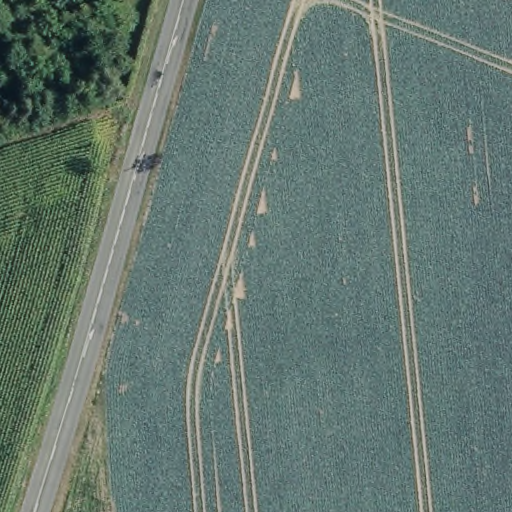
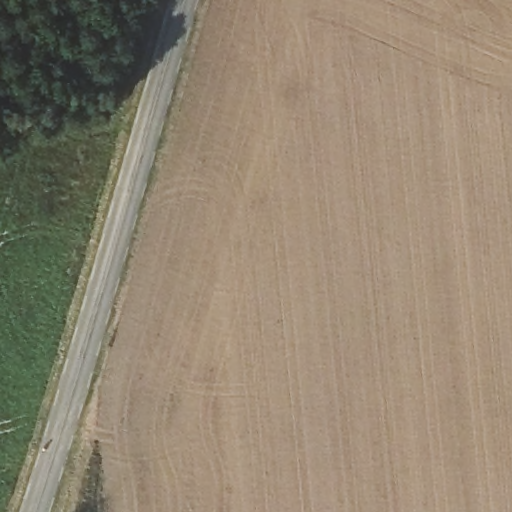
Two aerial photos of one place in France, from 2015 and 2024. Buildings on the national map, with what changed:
[]

